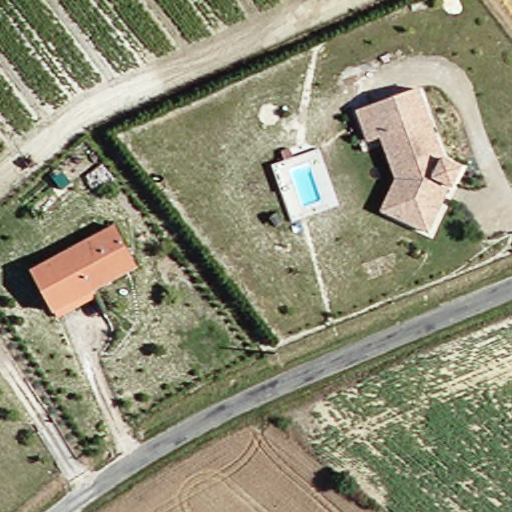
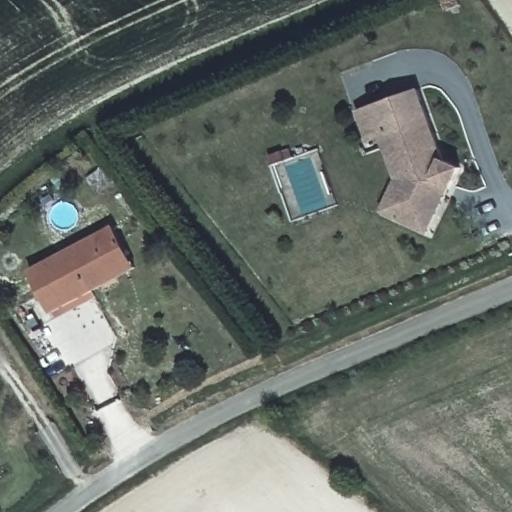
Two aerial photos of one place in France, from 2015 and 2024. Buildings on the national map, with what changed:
unchanged [(421,230),(395,220),(380,215),(394,181),(376,139),(364,145),(351,114),(413,89),(442,160),(459,166),(452,185),(450,185),(430,233),(421,230)]
unchanged [(31,273),(110,222),(125,245),(135,260),(119,272),(57,313),(31,273)]

